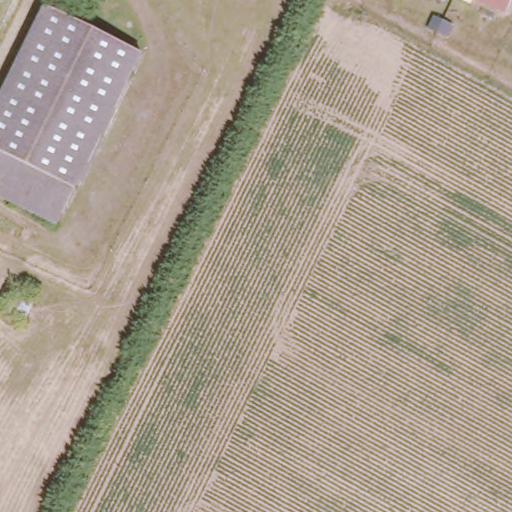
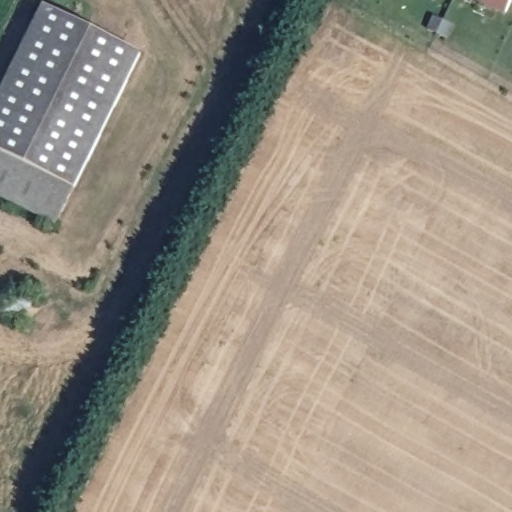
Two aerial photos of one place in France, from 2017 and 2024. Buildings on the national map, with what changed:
unchanged [(476,0),(511,0),(505,14),(476,0)]
unchanged [(144,52),(78,187),(0,149),(0,101),(48,5),(144,52)]
unchanged [(59,224),(0,194),(0,149),(78,187),(59,224)]
unchanged [(32,292),(22,314),(4,306),(14,284),(32,292)]

